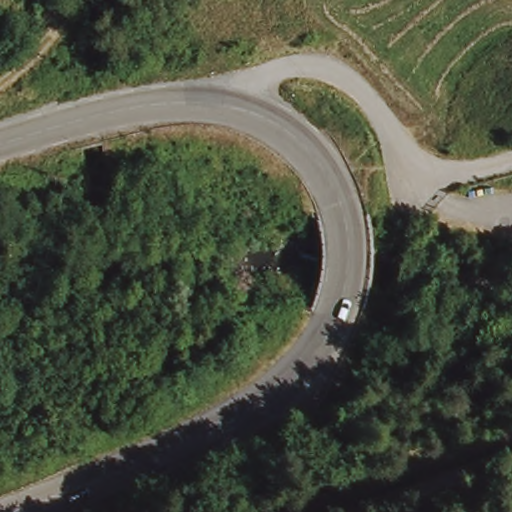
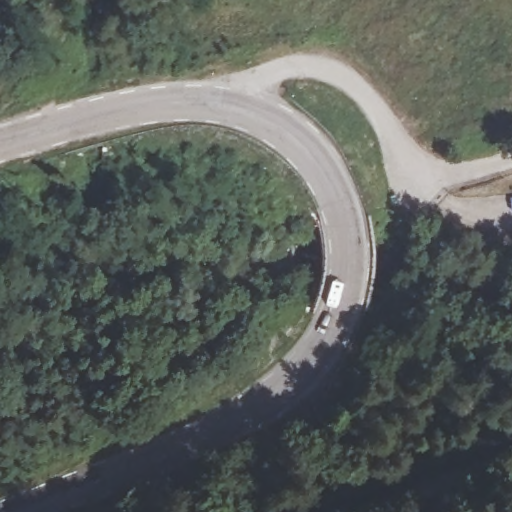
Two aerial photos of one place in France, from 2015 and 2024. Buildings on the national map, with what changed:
unchanged [(81,135),(82,151),(65,153),(64,136),(68,135),(81,135)]

